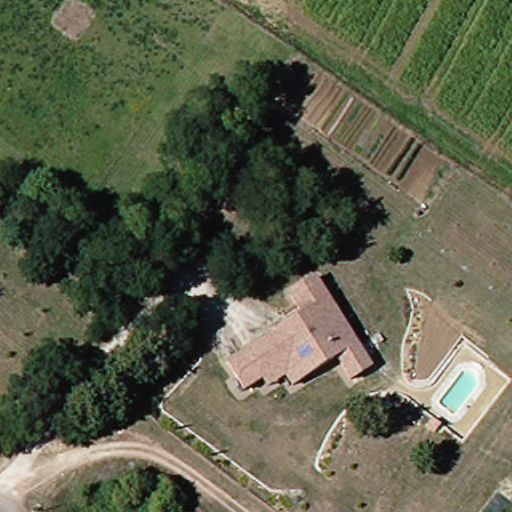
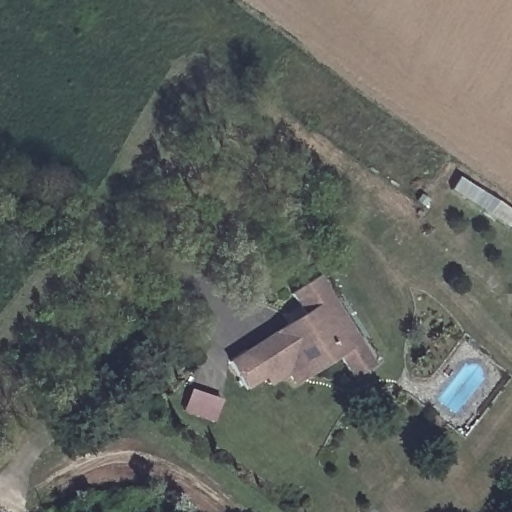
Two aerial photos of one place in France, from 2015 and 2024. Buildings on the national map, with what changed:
unchanged [(291,367),(273,380),(267,373),(251,385),(231,359),(305,308),(292,288),(316,270),(376,355),(357,368),(341,346),(316,364),(298,376),(291,367)]

